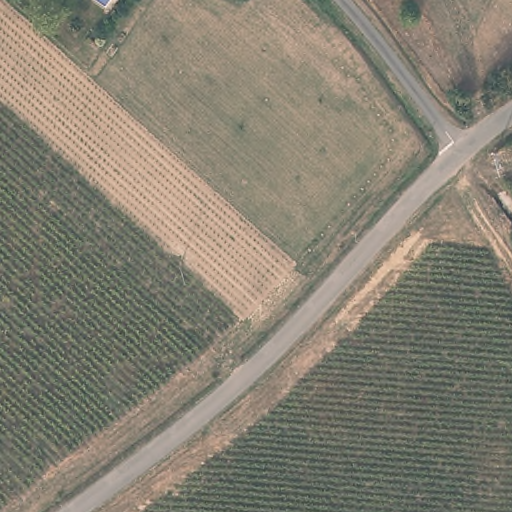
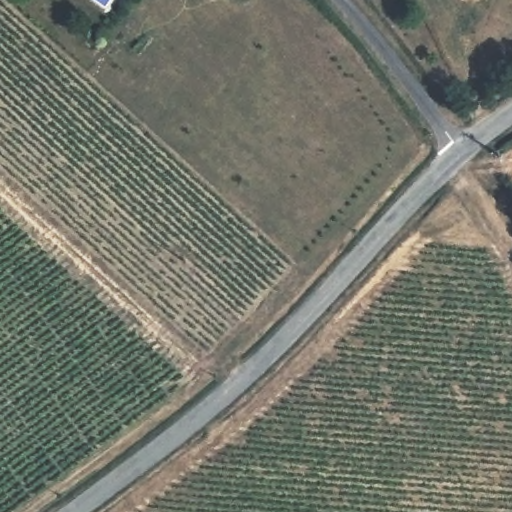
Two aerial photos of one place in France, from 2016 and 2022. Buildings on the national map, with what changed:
[]

